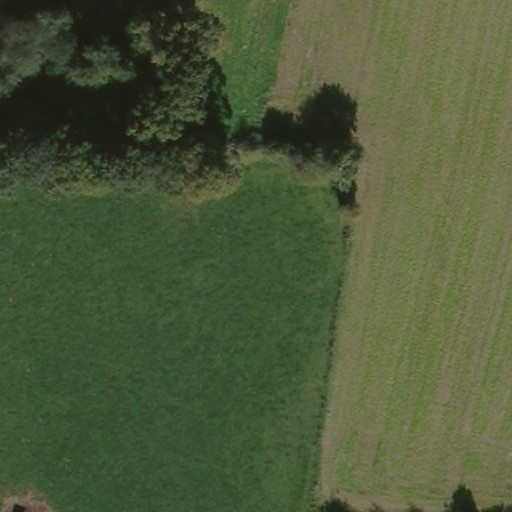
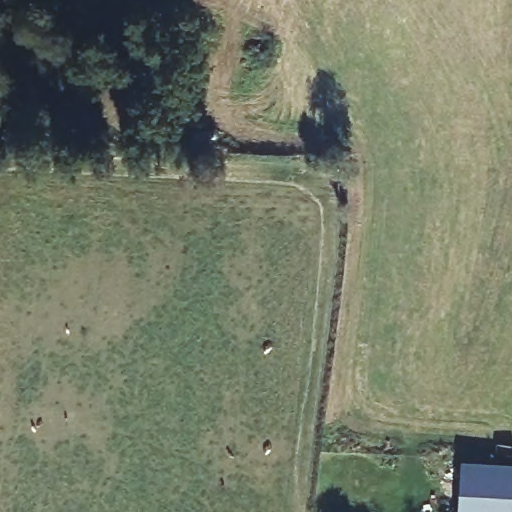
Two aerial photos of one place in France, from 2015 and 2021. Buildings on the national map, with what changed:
new [(512,462),(512,512),(457,512),(460,458),(512,462)]

